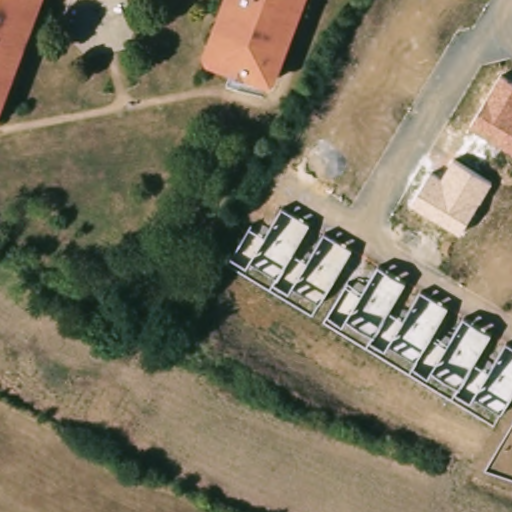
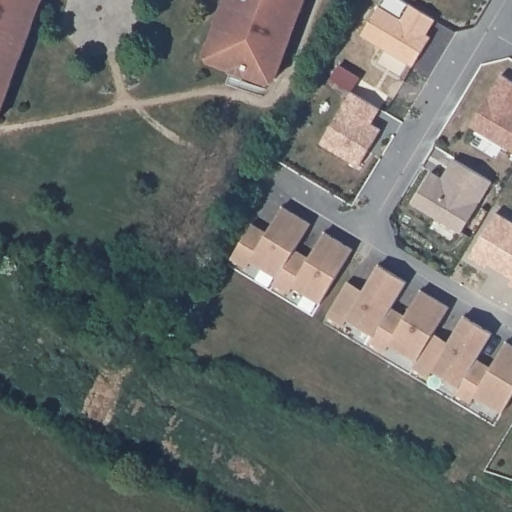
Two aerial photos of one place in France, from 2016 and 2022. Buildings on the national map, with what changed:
unchanged [(5,127),(0,125),(0,0),(54,0),(5,127)]
unchanged [(266,86),(257,91),(198,69),(194,57),(216,0),(300,0),(266,86)]
new [(376,7),(400,21),(408,6),(433,20),(424,35),(428,37),(413,67),(361,37),(376,7)]
unchanged [(512,151),(471,126),(500,75),(512,81),(512,151)]
new [(349,97),(377,114),(369,129),(379,135),(357,172),(318,150),(349,97)]
unchanged [(492,181),(463,235),(408,205),(431,169),(441,176),(452,157),(492,181)]
unchanged [(313,224),(296,253),(307,259),(325,231),(352,247),(318,306),(294,288),(290,293),(271,282),(274,278),(251,264),(249,268),(230,256),(250,225),(264,234),(281,205),(313,224)]
new [(512,226),(512,278),(507,276),(506,278),(487,267),(485,271),(468,261),(494,216),(512,226)]
unchanged [(391,310),(403,317),(421,288),(451,307),(435,337),(446,343),(464,316),(493,333),(477,363),(488,370),(506,340),(512,343),(512,400),(503,414),(476,397),(472,402),(456,391),(458,387),(433,371),(430,377),(413,365),(417,359),(390,343),(385,350),(370,340),(372,336),(346,320),(343,325),(326,317),(347,280),(362,290),(378,264),(407,282),(391,310)]
new [(512,283),(512,290),(508,288),(512,283)]

